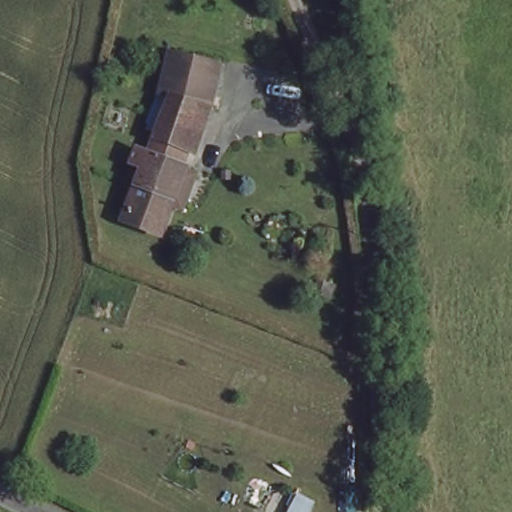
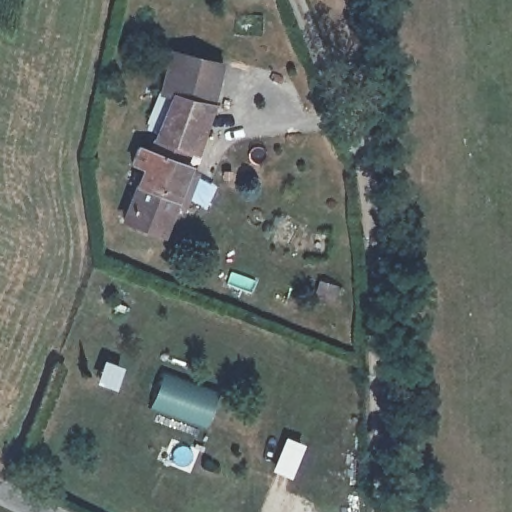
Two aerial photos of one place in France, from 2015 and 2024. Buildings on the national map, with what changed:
unchanged [(122,215),(140,169),(127,161),(137,145),(145,147),(167,99),(157,96),(167,46),(220,60),(207,118),(187,186),(169,236),(122,215)]
new [(162,372),(217,391),(204,418),(207,420),(205,426),(150,406),(157,389),(162,372)]

